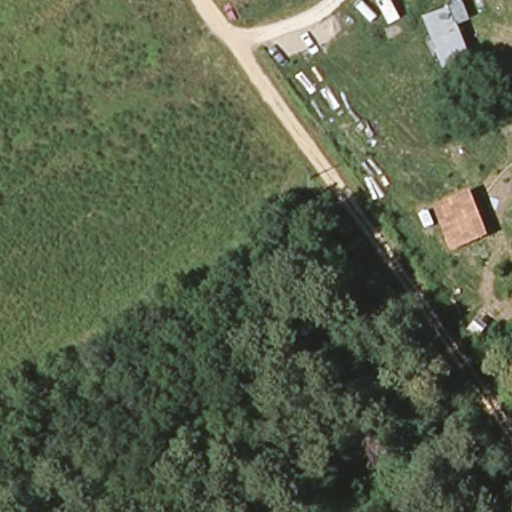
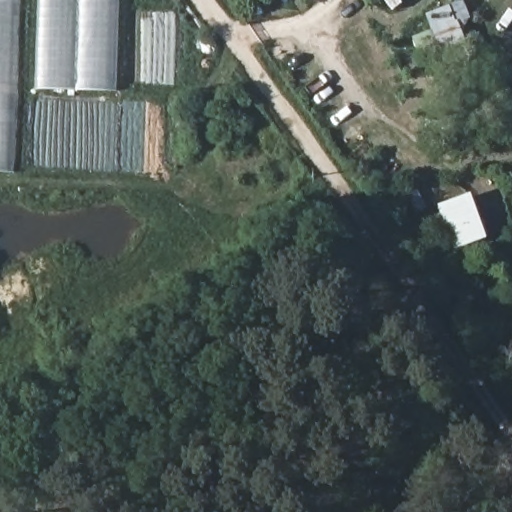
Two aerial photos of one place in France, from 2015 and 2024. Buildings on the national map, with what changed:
new [(14,171),(0,170),(0,0),(20,0),(14,171)]
new [(117,89),(35,88),(38,0),(118,0),(117,89)]
unchanged [(458,23),(471,56),(443,66),(423,14),(460,0),(463,0),(470,18),(458,23)]
unchanged [(451,251),(434,204),(472,191),(489,235),(451,251)]

